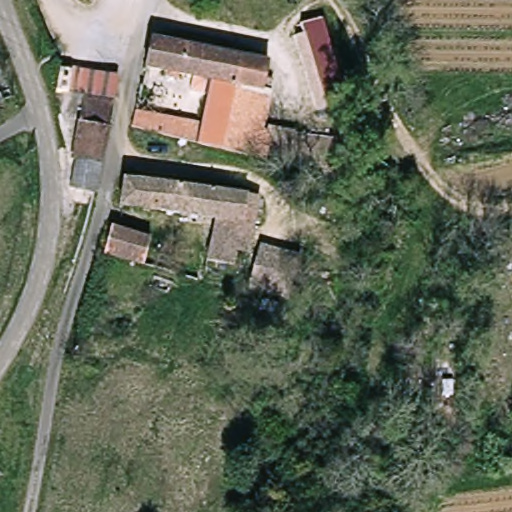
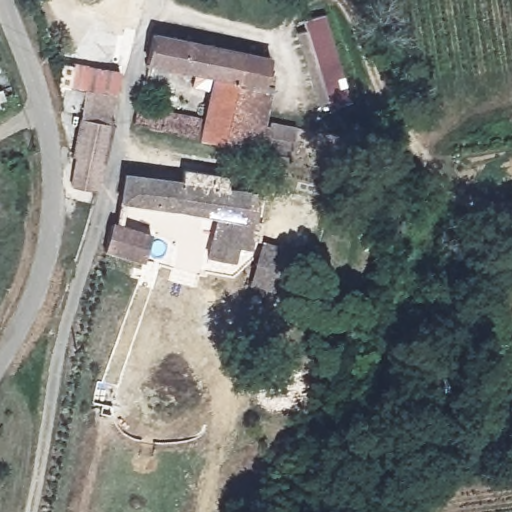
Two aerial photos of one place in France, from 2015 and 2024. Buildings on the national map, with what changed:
unchanged [(336,49),(345,96),(323,102),(303,25),(327,20),(336,49)]
unchanged [(268,59),(265,89),(237,87),(229,145),(135,131),(139,112),(209,122),(215,81),(148,70),(155,41),(268,59)]
unchanged [(118,75),(120,76),(115,99),(117,99),(101,152),(92,191),(68,187),(73,159),(69,159),(82,92),(55,87),(60,64),(118,75)]
unchanged [(261,122),(258,150),(229,145),(237,87),(265,89),(261,122)]
unchanged [(246,189),(247,206),(261,208),(258,246),(250,245),(248,258),(255,258),(253,290),(235,290),(235,270),(208,265),(215,211),(115,201),(123,175),(246,189)]
unchanged [(153,237),(146,266),(105,258),(113,229),(153,237)]

